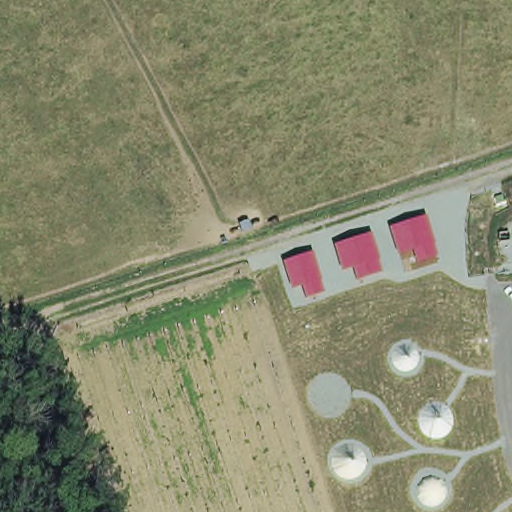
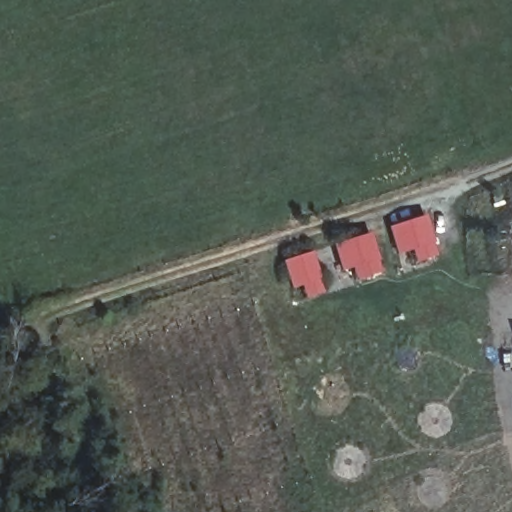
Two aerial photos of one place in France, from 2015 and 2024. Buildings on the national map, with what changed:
unchanged [(426,216),(434,243),(433,244),(437,256),(416,263),(412,250),(397,255),(388,227),(426,216)]
unchanged [(371,234),(379,261),(376,261),(381,273),(356,281),(352,268),(341,271),(340,271),(333,245),(371,234)]
unchanged [(311,252),(321,280),(319,280),(323,294),(306,299),(301,286),(291,289),(282,262),(311,252)]

